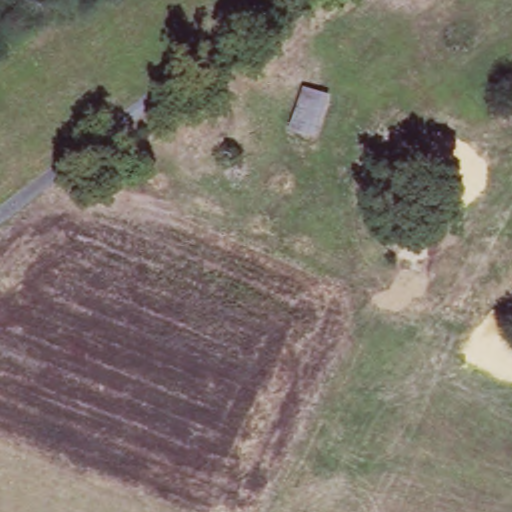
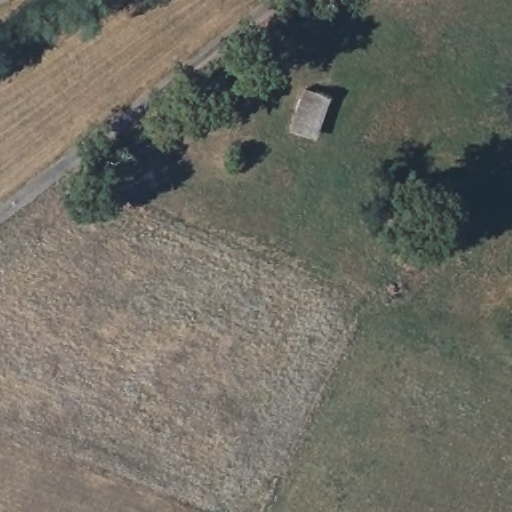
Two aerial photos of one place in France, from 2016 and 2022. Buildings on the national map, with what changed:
unchanged [(306,86),(333,96),(319,141),(289,133),(306,86)]

